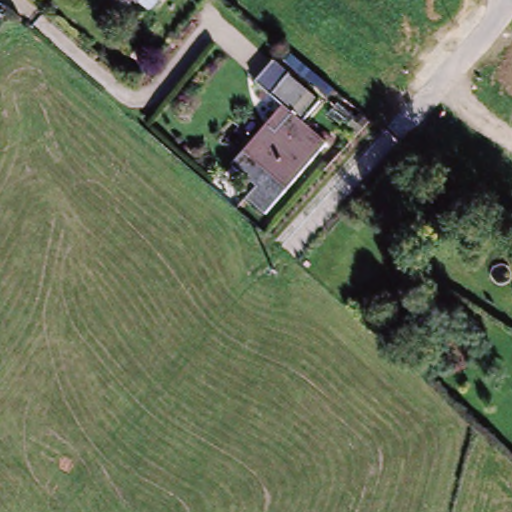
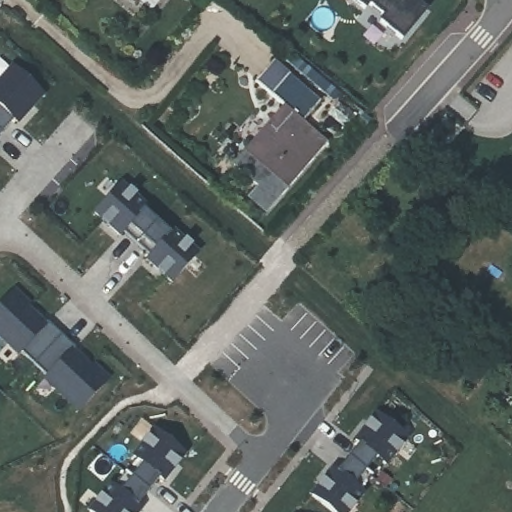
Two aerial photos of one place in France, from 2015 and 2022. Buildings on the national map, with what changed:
unchanged [(141,0),(158,0),(152,8),(141,0)]
unchanged [(245,195),(256,183),(232,162),(244,148),(248,144),(270,119),(283,103),(270,92),(254,78),(270,58),(287,72),(288,71),(320,100),(303,119),(327,140),(287,185),(263,211),(245,195)]
new [(9,75),(37,100),(15,126),(10,122),(0,134),(0,84),(9,75)]
new [(120,184),(146,207),(143,210),(170,234),(172,230),(198,254),(172,282),(147,259),(150,255),(123,231),(120,235),(95,212),(120,184)]
new [(14,290),(29,303),(26,306),(45,324),(47,321),(75,347),(72,350),(92,368),(94,365),(109,379),(79,411),(45,378),(47,375),(21,351),(18,354),(0,336),(0,304),(14,290)]
new [(333,468),(337,471),(360,443),(355,440),(377,413),(407,437),(386,465),(383,462),(360,490),(363,492),(348,512),(333,512),(312,495),(333,468)]
new [(110,484),(113,486),(136,458),(133,456),(155,429),(185,453),(163,480),(159,477),(137,505),(141,508),(138,512),(90,512),(89,511),(110,484)]

